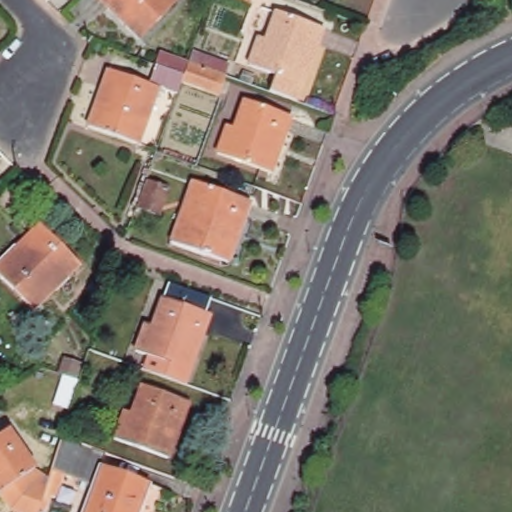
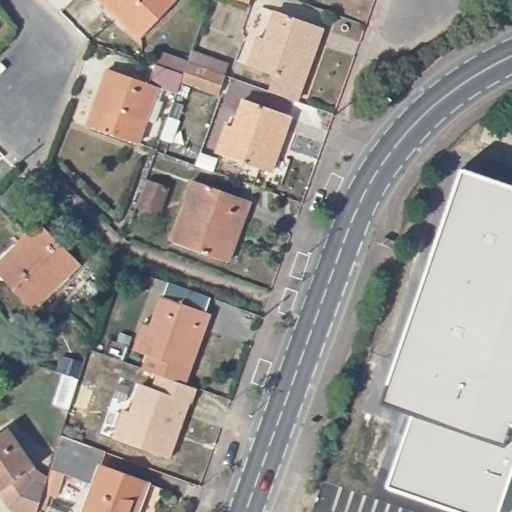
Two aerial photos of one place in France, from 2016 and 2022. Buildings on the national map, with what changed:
unchanged [(176,4),(140,41),(99,0),(171,0),(176,4)]
unchanged [(270,40),(280,13),(326,29),(300,99),(271,89),(278,72),(252,63),(262,37),(270,40)]
unchanged [(156,62),(188,72),(191,63),(228,77),(222,94),(184,81),(179,95),(158,88),(137,145),(86,126),(107,69),(147,83),(156,62)]
unchanged [(234,129),(244,102),(289,118),(269,174),(218,155),(228,127),(234,129)]
new [(512,472),(512,471),(497,512),(458,512),(384,486),(410,414),(378,403),(460,167),(512,186),(512,472)]
unchanged [(170,183),(159,211),(140,204),(151,176),(170,183)]
unchanged [(248,204),(227,263),(172,243),(193,186),(248,204)]
unchanged [(79,266),(34,313),(0,281),(0,262),(35,225),(79,266)]
unchanged [(156,326),(166,298),(213,315),(193,370),(139,351),(149,324),(156,326)]
unchanged [(130,414),(140,385),(188,402),(167,458),(113,438),(123,411),(130,414)]
unchanged [(3,430),(31,469),(0,492),(0,432),(3,430)]
unchanged [(50,482),(65,435),(109,451),(103,467),(152,485),(142,512),(86,512),(95,487),(62,475),(59,485),(50,482)]
unchanged [(50,482),(40,512),(9,512),(0,501),(0,492),(31,469),(52,476),(50,482)]
new [(512,472),(512,481),(509,480),(512,471),(512,472)]

